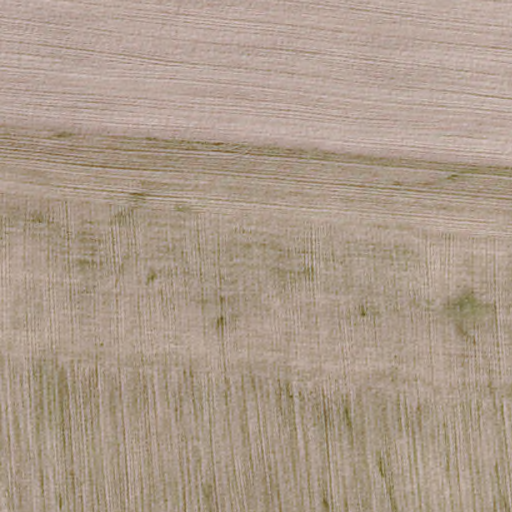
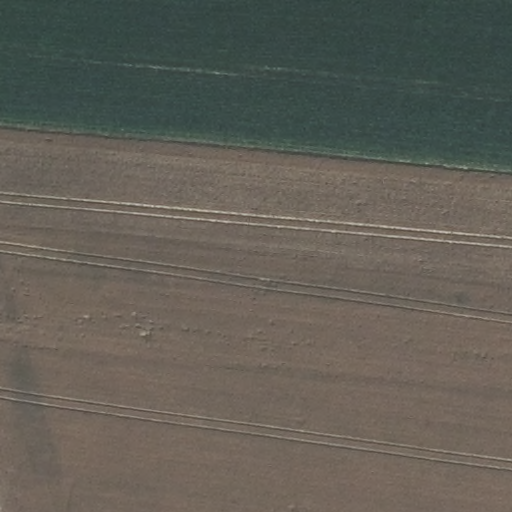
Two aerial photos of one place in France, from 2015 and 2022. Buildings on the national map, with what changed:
[]

